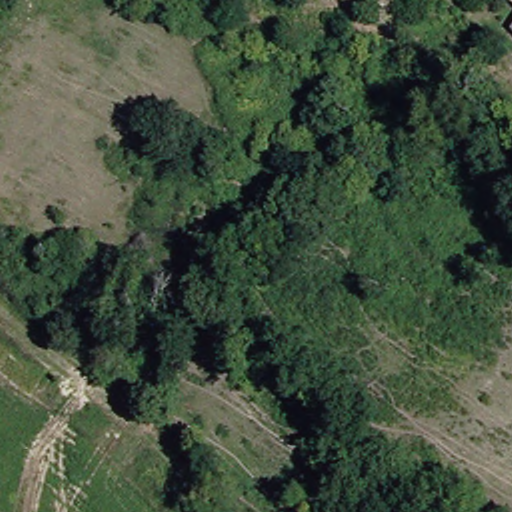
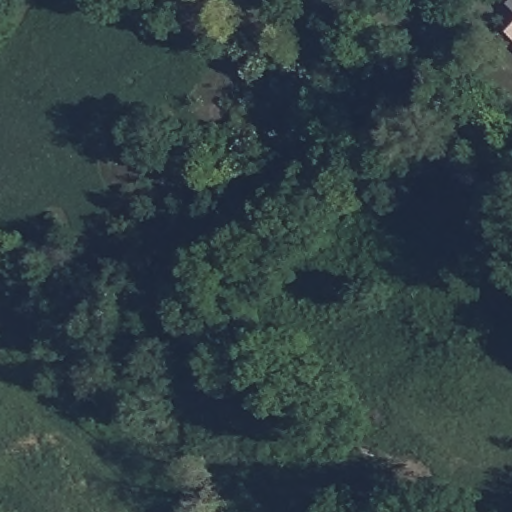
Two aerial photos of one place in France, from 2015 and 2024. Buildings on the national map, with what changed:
[]

